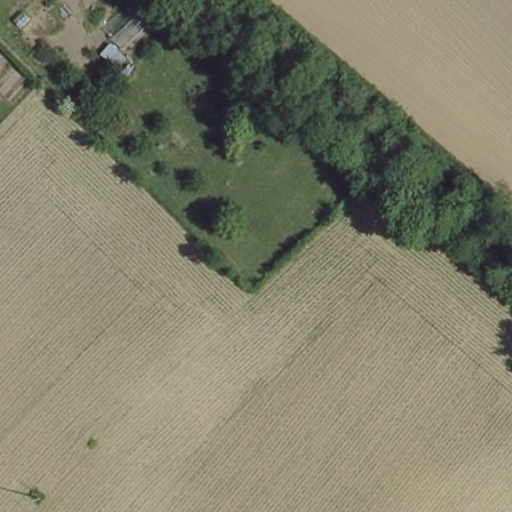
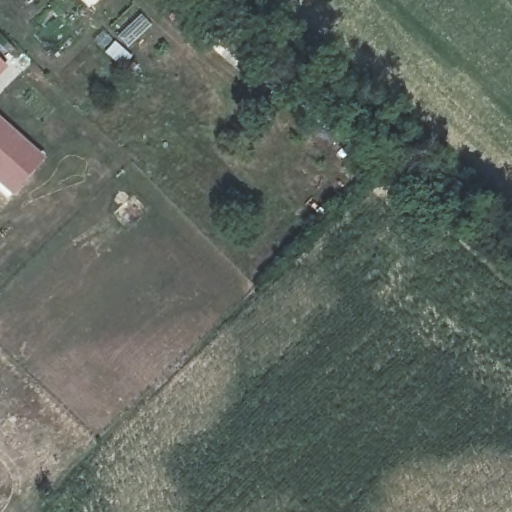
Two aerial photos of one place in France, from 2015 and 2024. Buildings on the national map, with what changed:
new [(0,74),(0,59),(8,66),(0,74)]
new [(0,185),(0,117),(45,158),(11,194),(0,185)]

